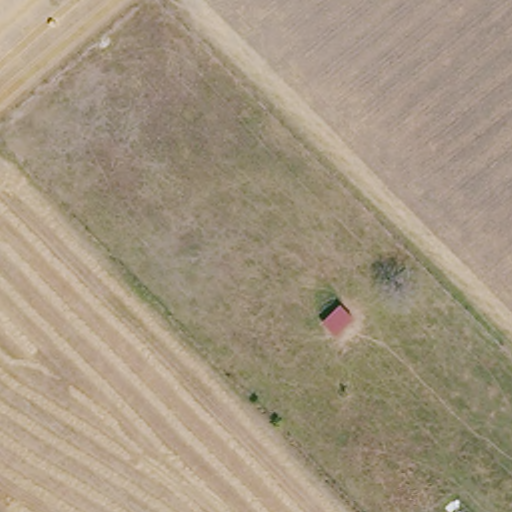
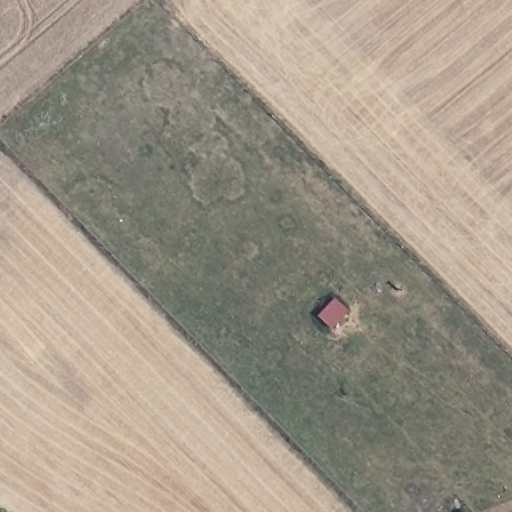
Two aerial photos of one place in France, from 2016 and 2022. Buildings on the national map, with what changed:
[]

